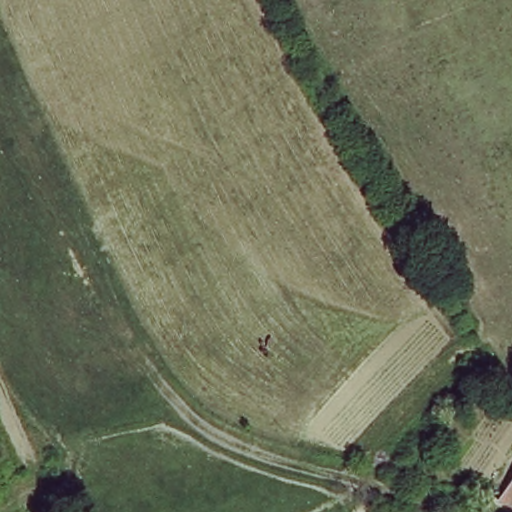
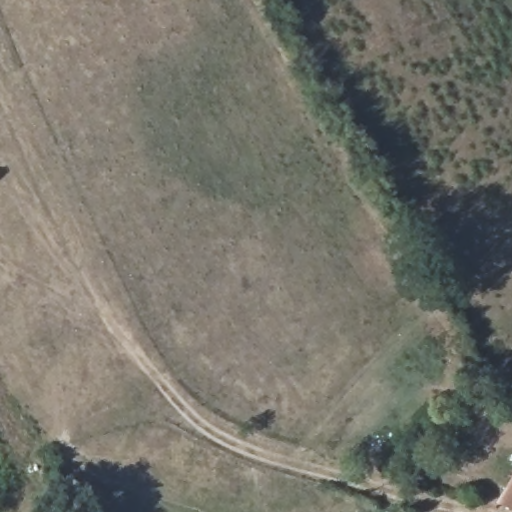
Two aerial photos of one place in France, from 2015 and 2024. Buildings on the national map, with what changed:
unchanged [(512,478),(512,502),(502,494),(512,478)]

